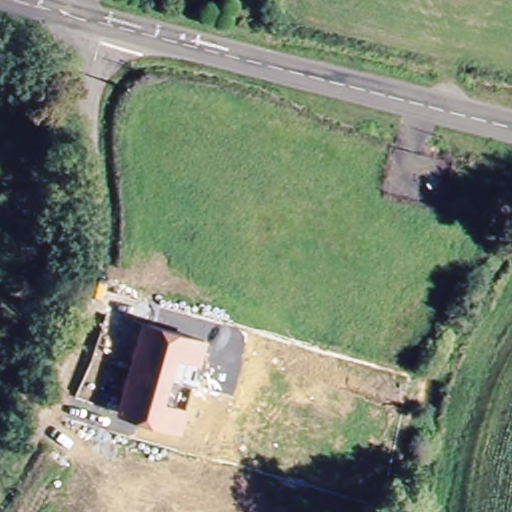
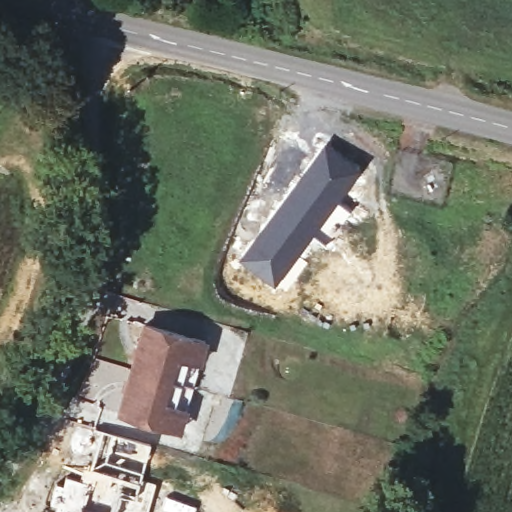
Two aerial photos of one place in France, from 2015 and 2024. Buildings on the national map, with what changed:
new [(307,163),(324,141),(364,169),(338,202),(350,211),(331,236),(320,227),(296,261),(275,286),(237,259),(307,163)]
unchanged [(207,337),(182,433),(116,417),(142,321),(207,337)]
new [(64,486),(67,475),(80,479),(83,466),(91,468),(102,429),(151,443),(142,476),(156,482),(147,512),(56,512),(58,505),(51,503),(57,483),(64,486)]

